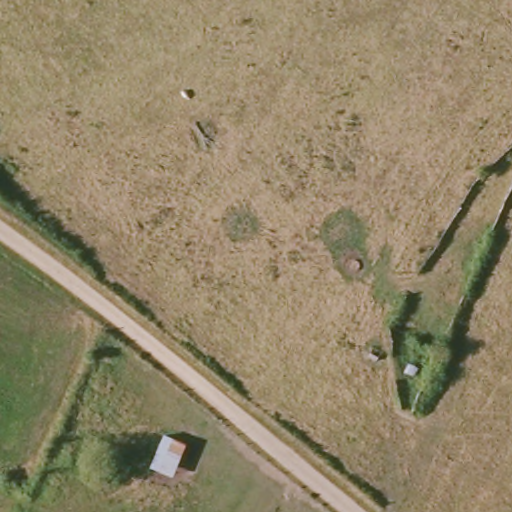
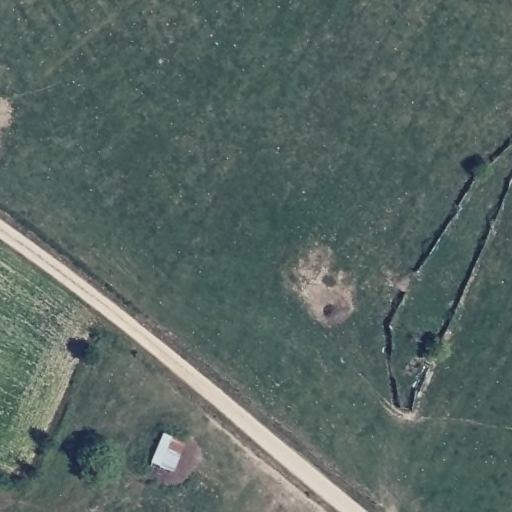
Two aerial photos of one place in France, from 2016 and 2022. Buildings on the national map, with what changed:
unchanged [(167,431),(193,444),(177,479),(153,467),(167,431)]

